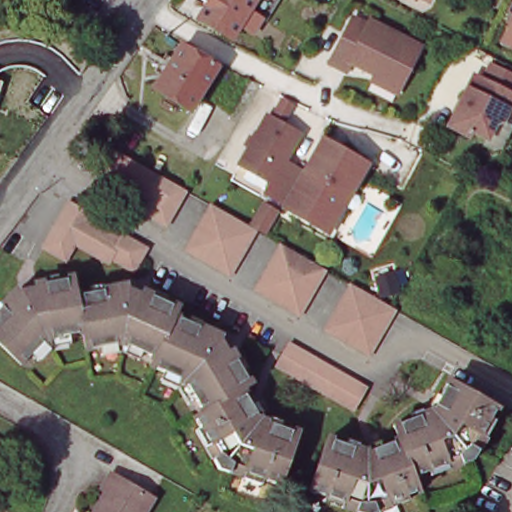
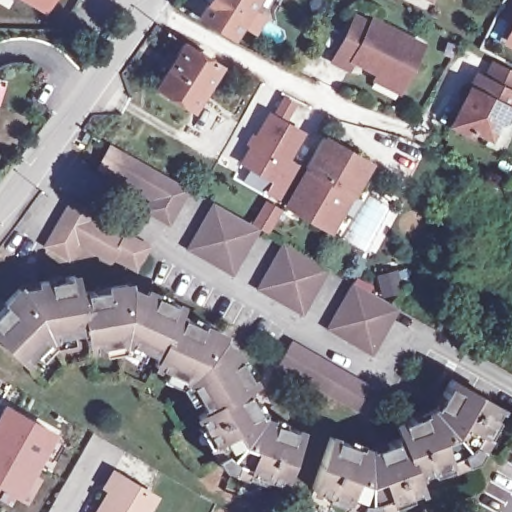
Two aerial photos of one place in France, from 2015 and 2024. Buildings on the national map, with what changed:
new [(21,0),(55,0),(46,15),(21,0)]
unchanged [(256,12),(251,21),(246,18),(236,35),(201,14),(209,0),(257,0),(251,10),(256,12)]
unchanged [(379,77),(383,69),(357,56),(353,66),(337,57),(359,15),(375,21),(378,15),(428,41),(408,81),(404,90),(379,77)]
unchanged [(512,15),(512,45),(500,39),(512,15)]
unchanged [(195,111),(157,87),(165,75),(158,70),(166,57),(174,62),(185,46),(221,68),(195,111)]
unchanged [(509,114),(496,120),(489,132),(477,127),(474,132),(452,120),(459,108),(467,94),(479,71),(512,88),(512,107),(509,114)]
unchanged [(288,204),(269,193),(276,181),(245,164),(271,116),(305,133),(289,162),(306,171),(288,204)]
unchanged [(324,227),(286,206),(288,204),(306,171),(325,139),(372,165),(355,196),(334,233),(324,227)]
unchanged [(149,214),(156,202),(100,171),(112,147),(191,192),(183,205),(178,215),(171,227),(149,214)]
unchanged [(133,271),(111,259),(109,262),(76,243),(67,258),(43,245),(69,201),(92,213),(89,220),(122,239),(124,235),(147,247),(133,271)]
unchanged [(262,202),(281,212),(267,235),(260,231),(233,277),(190,252),(216,206),(249,225),(262,202)]
unchanged [(307,258),(330,271),(303,317),(259,292),(267,279),(273,267),(286,246),(307,258)]
unchanged [(226,465),(219,453),(203,425),(208,422),(202,411),(210,406),(202,394),(194,398),(186,384),(167,377),(171,368),(158,363),(161,356),(148,350),(143,360),(127,352),(107,357),(105,345),(91,347),(87,328),(74,331),(75,341),(56,343),(42,356),(35,349),(26,357),(2,334),(0,333),(0,304),(1,303),(19,283),(25,287),(35,288),(42,288),(42,282),(61,279),(78,276),(81,292),(129,282),(131,287),(144,294),(147,290),(183,306),(180,312),(226,332),(224,336),(234,351),(238,347),(257,381),(248,385),(266,415),(302,429),(284,481),(271,476),(269,482),(237,468),(226,465)]
unchanged [(399,310),(372,357),(350,343),(329,331),(349,297),(355,286),(377,298),(395,308),(399,310)]
unchanged [(370,391),(357,412),(281,368),(294,347),(370,391)]
unchanged [(329,492),(314,486),(331,435),(370,445),(402,434),(398,420),(433,409),(451,378),(499,406),(493,416),(498,420),(481,447),(474,459),(465,462),(433,473),(431,467),(416,472),(421,485),(410,488),(413,496),(382,506),(369,510),(359,507),(327,497),(329,492)]
new [(3,401),(54,431),(15,497),(0,488),(0,406),(3,401)]
unchanged [(110,493),(105,491),(114,477),(154,501),(147,512),(98,512),(110,493)]

